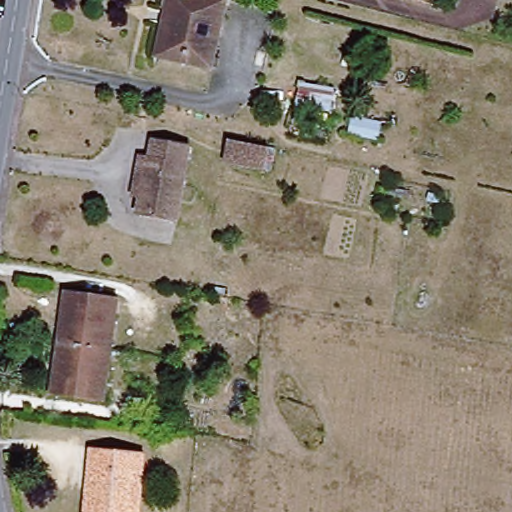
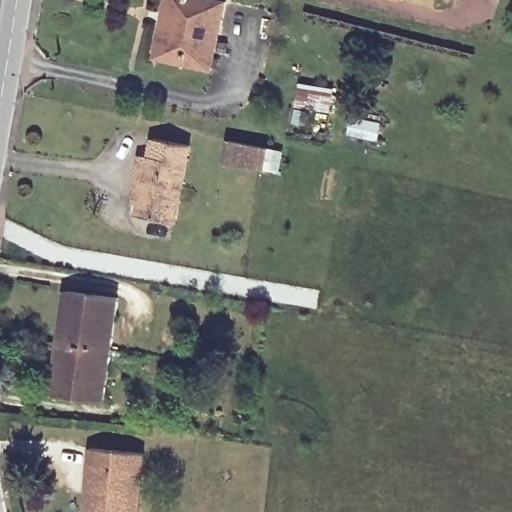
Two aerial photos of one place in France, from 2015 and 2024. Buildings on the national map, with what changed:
unchanged [(174,0),(225,0),(232,1),(217,67),(162,55),(174,0)]
unchanged [(401,0),(407,0),(407,1),(401,0)]
unchanged [(197,146),(180,224),(141,215),(145,199),(137,197),(145,155),(154,157),(157,139),(197,146)]
unchanged [(229,140),(270,149),(266,169),(225,160),(229,140)]
unchanged [(55,395),(71,290),(124,298),(109,402),(55,395)]
unchanged [(146,454),(140,512),(86,512),(92,448),(146,454)]

